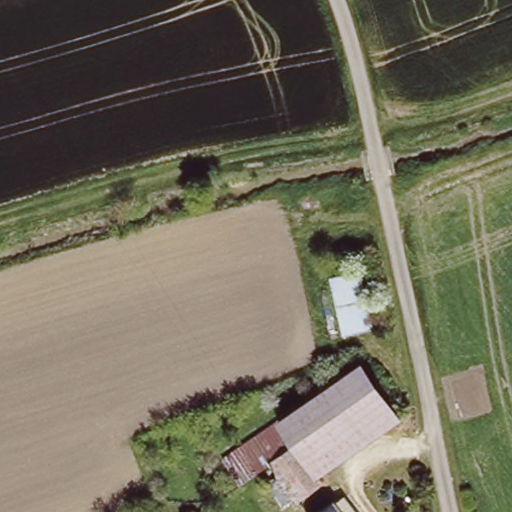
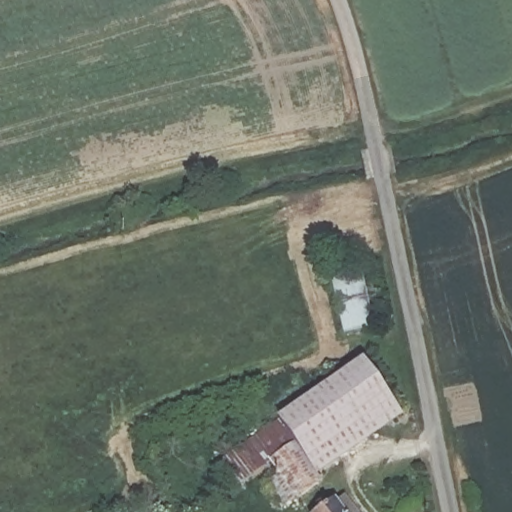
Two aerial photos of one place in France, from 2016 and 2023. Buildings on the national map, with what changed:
unchanged [(331,276),(360,270),(373,332),(345,338),(331,276)]
unchanged [(280,417),(357,365),(395,422),(322,473),(295,438),(280,417)]
unchanged [(322,473),(325,478),(300,496),(271,454),(295,438),(322,473)]
unchanged [(255,471),(236,480),(223,452),(242,443),(255,471)]
unchanged [(332,501),(340,512),(316,512),(332,501)]

